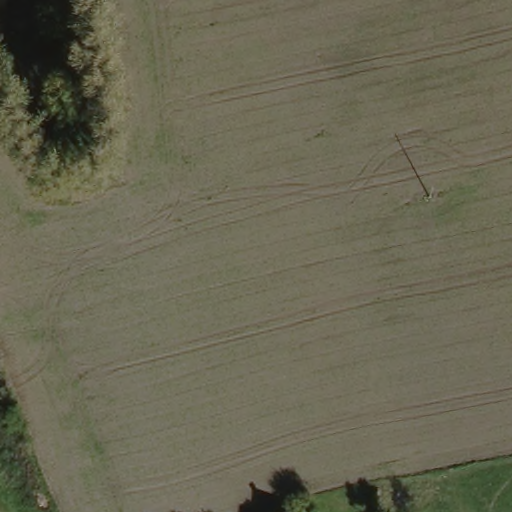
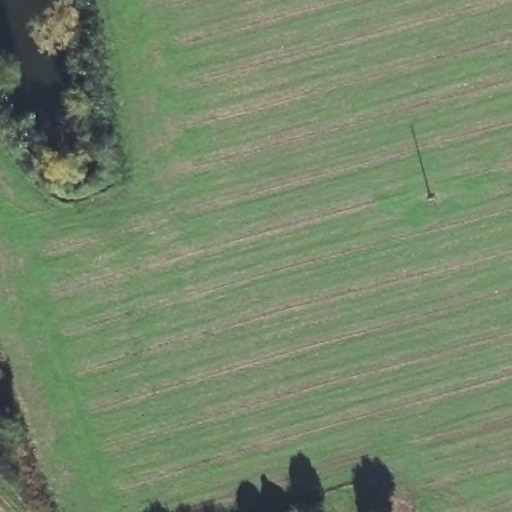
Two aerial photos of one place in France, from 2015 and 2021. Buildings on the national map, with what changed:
unchanged [(317,512),(297,512),(312,503),(317,512)]

